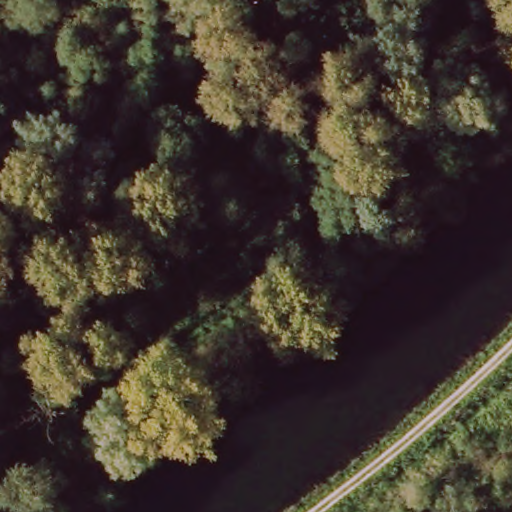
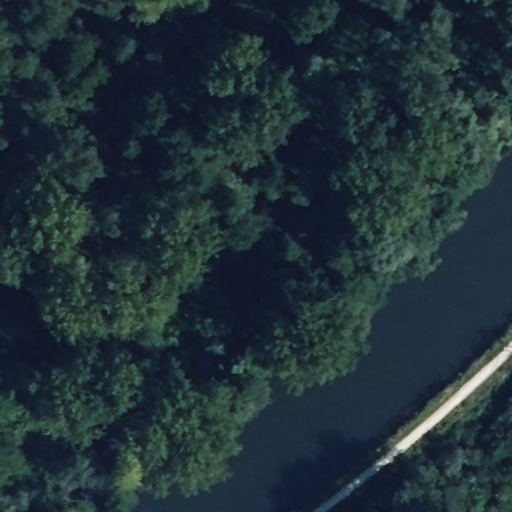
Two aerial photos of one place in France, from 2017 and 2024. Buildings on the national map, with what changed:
[]

